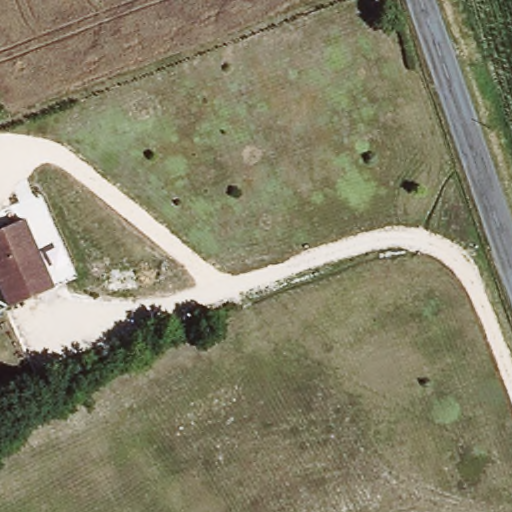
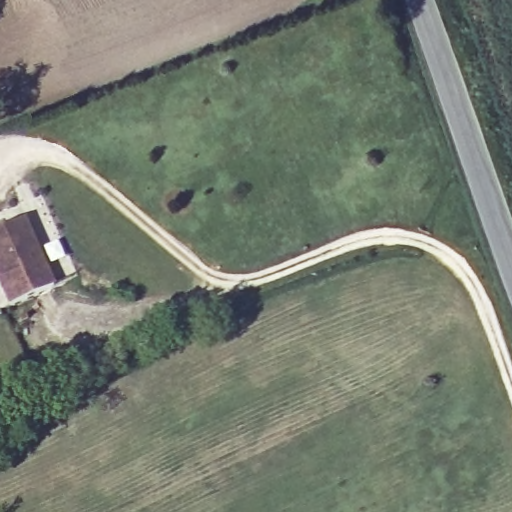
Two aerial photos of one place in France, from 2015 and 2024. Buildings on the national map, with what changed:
unchanged [(6,305),(0,289),(0,227),(24,217),(50,287),(6,305)]

